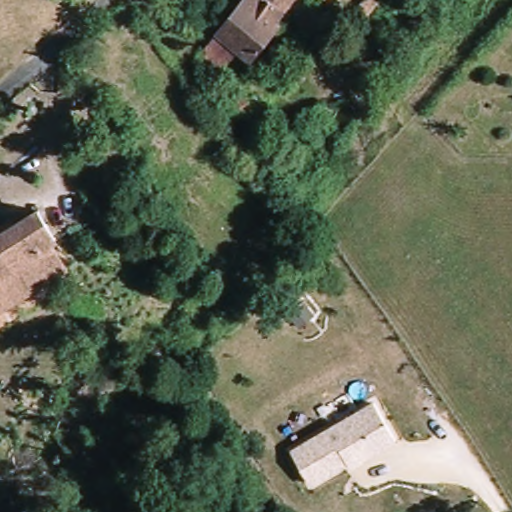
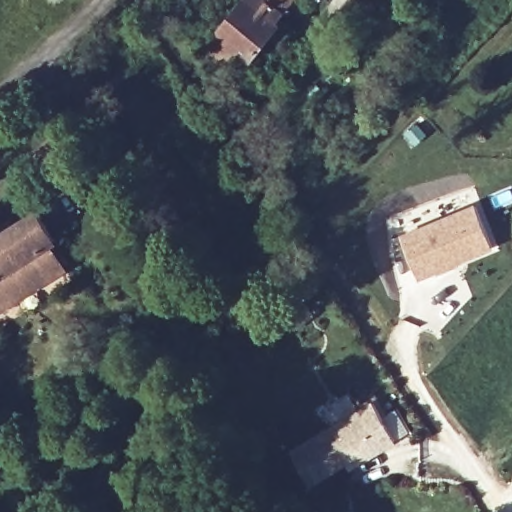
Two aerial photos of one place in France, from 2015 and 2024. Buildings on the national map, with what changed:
unchanged [(200,57),(223,26),(243,0),(287,0),(274,16),(278,19),(250,55),(236,46),(219,69),(200,57)]
unchanged [(353,11),(362,0),(379,0),(370,10),(366,9),(358,15),(353,11)]
unchanged [(67,43),(79,33),(86,40),(74,51),(67,43)]
unchanged [(218,80),(230,74),(250,98),(239,107),(218,80)]
new [(401,235),(474,204),(493,248),(419,278),(401,235)]
unchanged [(0,315),(0,240),(3,244),(19,233),(15,226),(36,212),(54,240),(50,242),(61,260),(68,270),(55,278),(0,315)]
unchanged [(291,447),(373,398),(398,439),(348,470),(346,466),(313,485),(291,447)]

